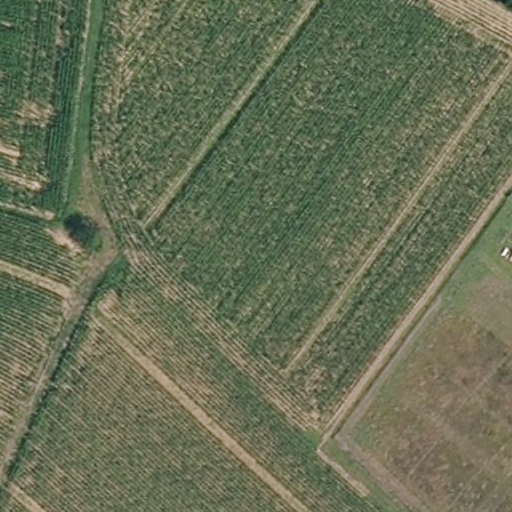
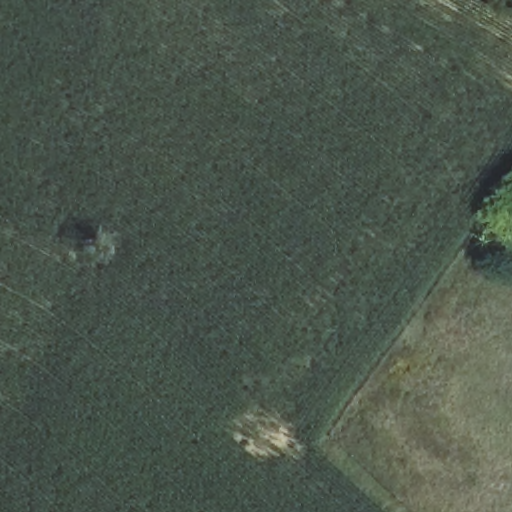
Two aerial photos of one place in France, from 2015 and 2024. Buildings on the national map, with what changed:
[]

